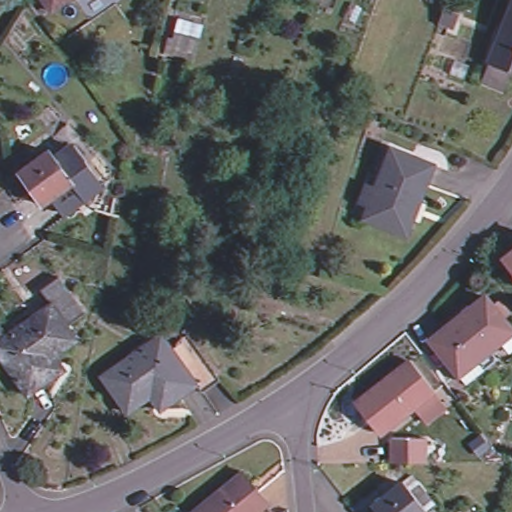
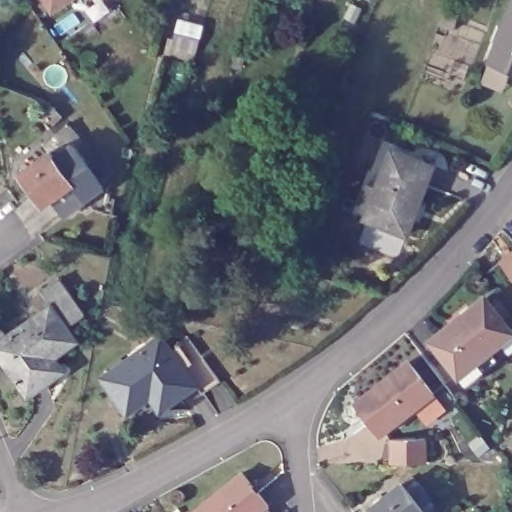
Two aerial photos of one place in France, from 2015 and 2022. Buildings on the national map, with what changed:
unchanged [(45,0),(75,0),(56,14),(45,0)]
unchanged [(490,63),(512,11),(512,72),(490,63)]
unchanged [(174,38),(196,44),(192,60),(170,55),(174,38)]
unchanged [(37,187),(27,191),(14,154),(48,142),(51,149),(71,142),(88,191),(68,198),(44,206),(37,187)]
unchanged [(368,187),(376,190),(393,150),(435,166),(407,234),(366,216),(370,206),(362,202),(368,187)]
unchanged [(507,253),(512,250),(512,259),(507,253)]
unchanged [(488,296),(512,326),(512,335),(462,376),(433,340),(488,296)]
unchanged [(45,376),(25,390),(0,350),(0,331),(52,298),(77,336),(36,362),(45,376)]
unchanged [(95,382),(159,344),(165,354),(190,397),(188,399),(168,411),(160,396),(118,420),(95,382)]
unchanged [(183,344),(213,395),(193,407),(188,399),(190,397),(165,354),(183,344)]
unchanged [(356,403),(409,360),(434,392),(381,434),(356,403)]
unchanged [(195,502),(255,473),(272,509),(267,512),(199,512),(195,502)]
unchanged [(410,482),(431,512),(384,512),(379,504),(410,482)]

